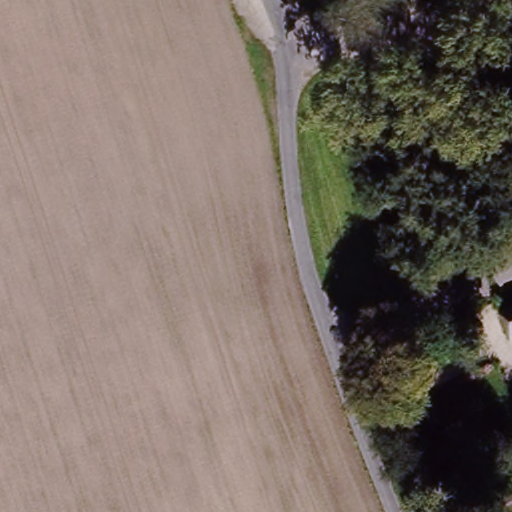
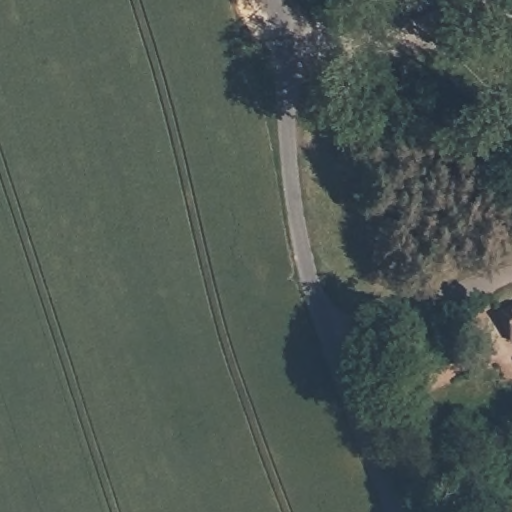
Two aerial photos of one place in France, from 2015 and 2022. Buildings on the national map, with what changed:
unchanged [(512,305),(512,331),(507,321),(500,310),(512,305)]
unchanged [(452,440),(425,451),(392,377),(419,367),(452,440)]

